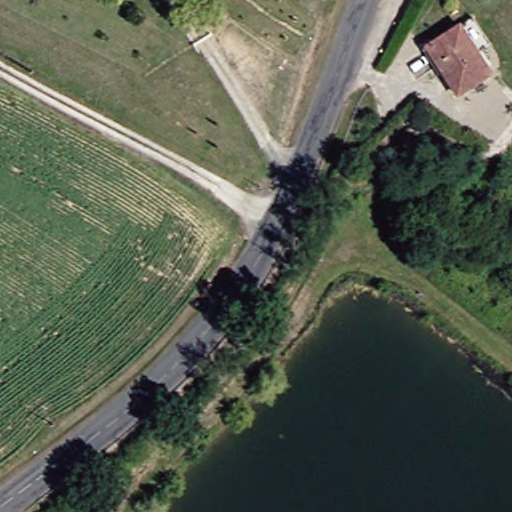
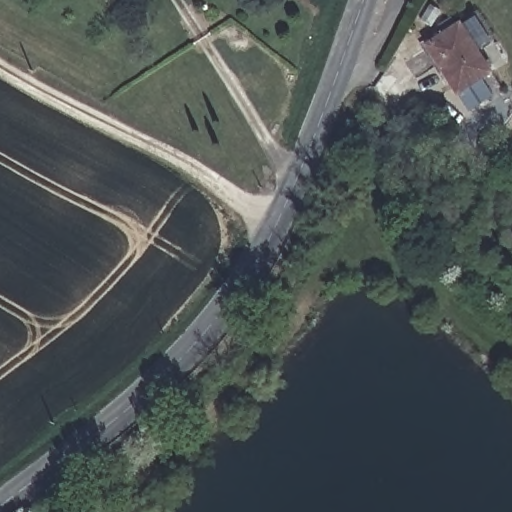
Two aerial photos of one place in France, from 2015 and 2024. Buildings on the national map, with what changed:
unchanged [(450,94),(415,43),(452,21),(463,14),(481,40),(471,49),(484,70),(450,94)]

